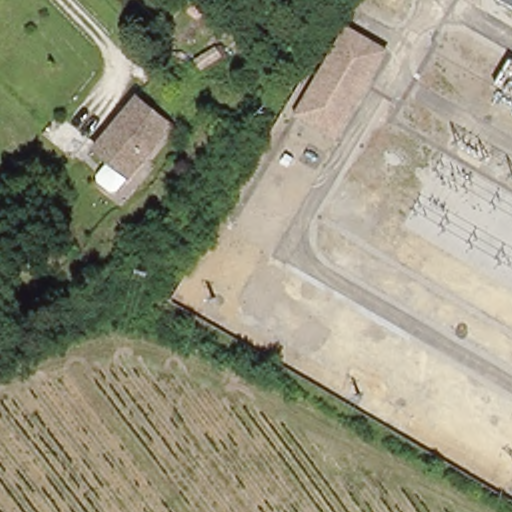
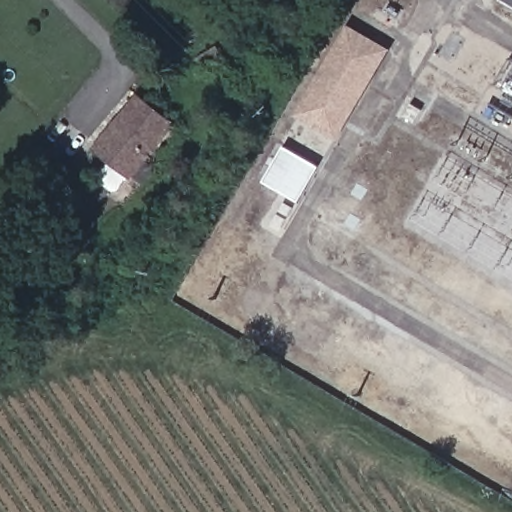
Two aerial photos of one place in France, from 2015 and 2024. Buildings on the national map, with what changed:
unchanged [(512,0),(512,5),(504,0),(512,0)]
unchanged [(320,74),(348,26),(385,47),(357,97),(320,74)]
unchanged [(337,133),(299,111),(320,74),(357,97),(337,133)]
unchanged [(129,174),(94,147),(135,93),(171,119),(129,174)]
new [(299,202),(264,180),(285,145),(321,166),(299,202)]

